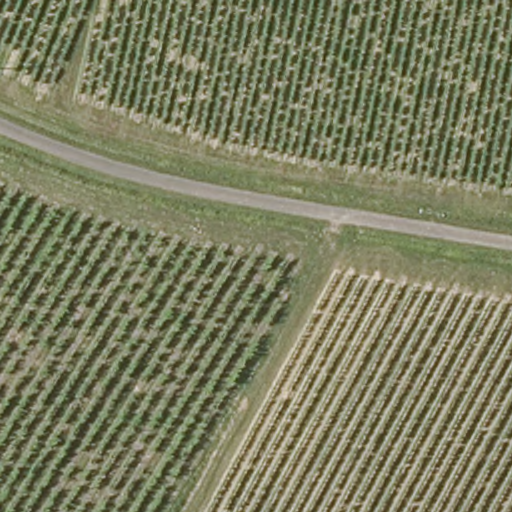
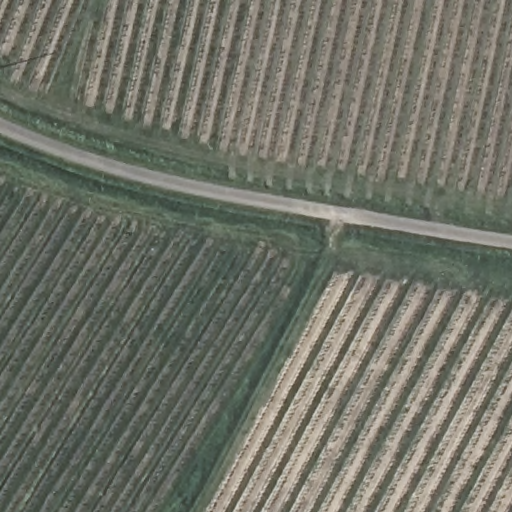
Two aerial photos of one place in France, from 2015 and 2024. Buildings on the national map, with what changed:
[]

